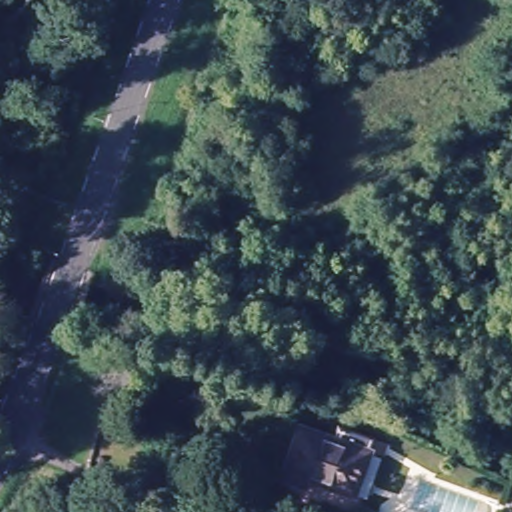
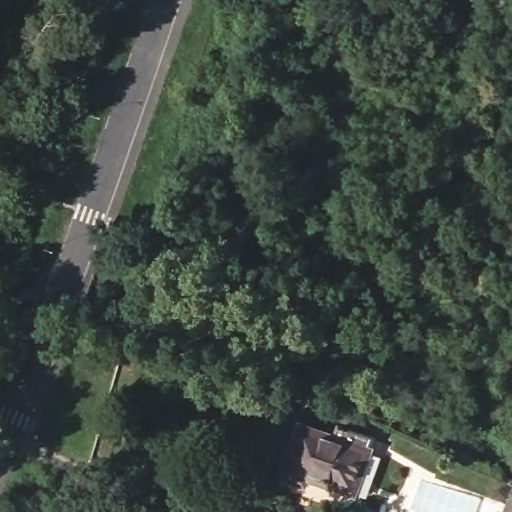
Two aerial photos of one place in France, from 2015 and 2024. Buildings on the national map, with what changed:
unchanged [(345,491),(309,479),(306,487),(284,479),(301,429),(334,440),(339,429),(372,441),(360,475),(353,494),(345,491)]

